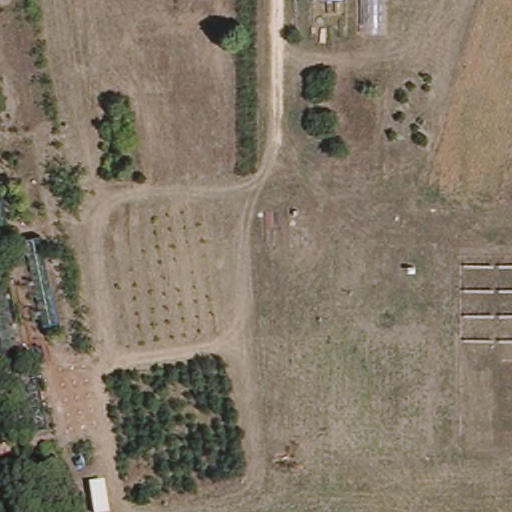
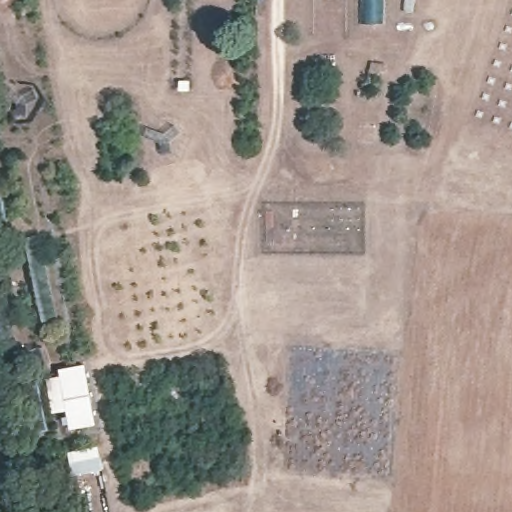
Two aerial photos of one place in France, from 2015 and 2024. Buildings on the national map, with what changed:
new [(61,376),(60,367),(84,363),(95,425),(70,429),(67,410),(56,411),(50,378),(61,376)]

